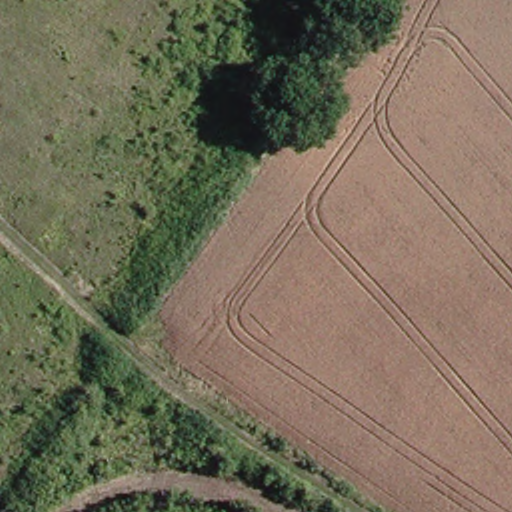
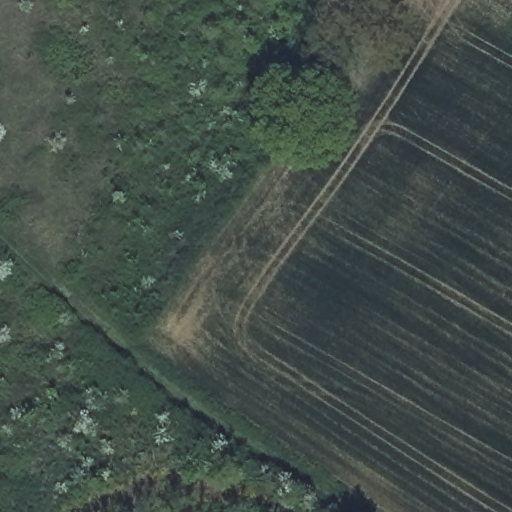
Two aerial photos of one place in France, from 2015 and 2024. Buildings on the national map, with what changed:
[]

